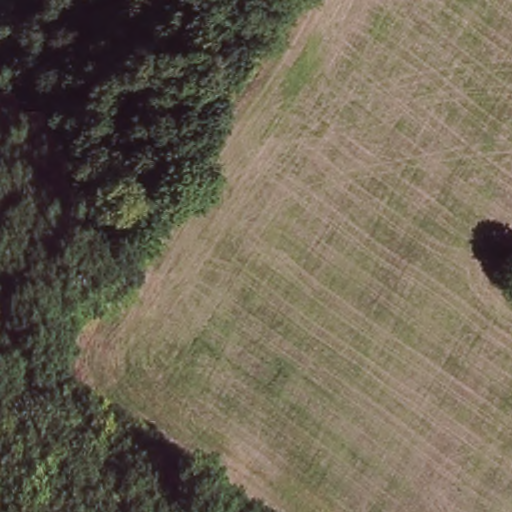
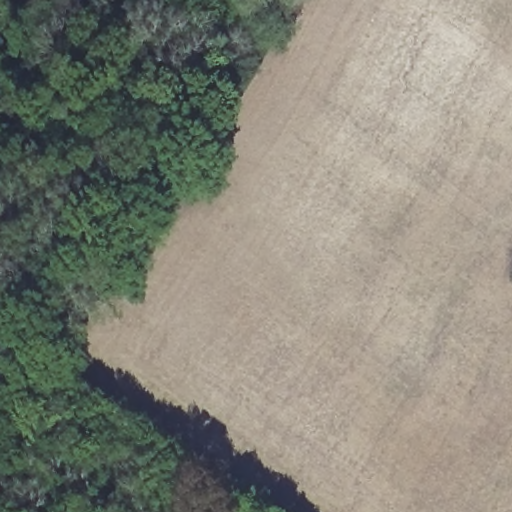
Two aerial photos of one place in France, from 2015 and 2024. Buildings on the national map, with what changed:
unchanged [(20,4),(0,22),(0,0),(16,0),(20,4)]

